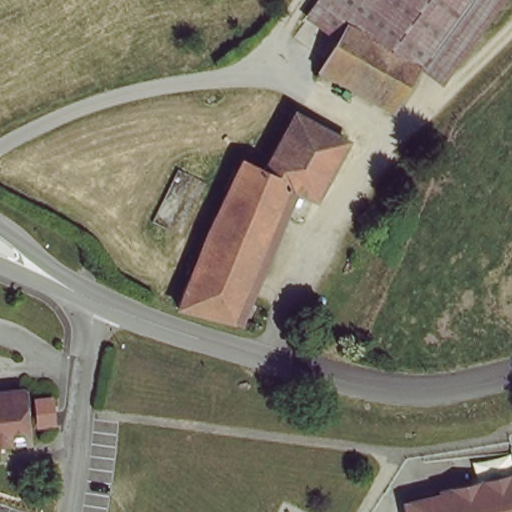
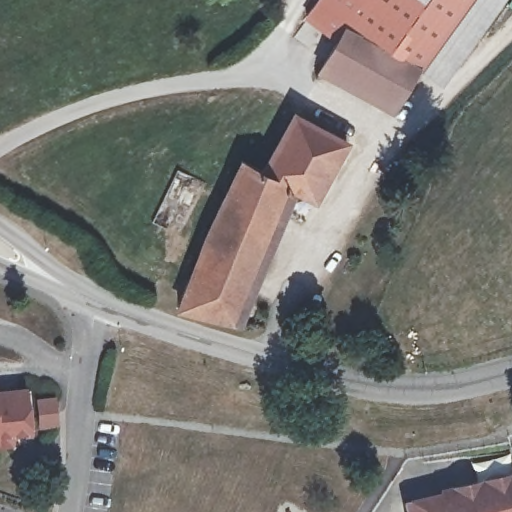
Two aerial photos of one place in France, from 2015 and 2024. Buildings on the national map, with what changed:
unchanged [(303,11),(311,0),(359,0),(340,25),(335,35),(303,11)]
unchanged [(499,0),(456,56),(430,40),(425,49),(390,30),(377,47),(340,25),(359,0),(499,0)]
unchanged [(335,35),(340,25),(377,47),(390,30),(425,49),(386,112),(314,71),(335,35)]
unchanged [(285,190),(229,328),(172,307),(198,247),(204,234),(240,160),(262,171),(292,117),(344,144),(312,202),(300,196),(285,190)]
unchanged [(239,332),(229,328),(285,190),(300,196),(239,332)]
unchanged [(102,262),(107,265),(104,275),(88,270),(92,259),(102,262)]
unchanged [(13,400),(31,400),(33,435),(18,435),(18,445),(0,446),(0,395),(13,395),(13,400)]
unchanged [(407,501),(512,480),(512,512),(409,512),(407,501)]

